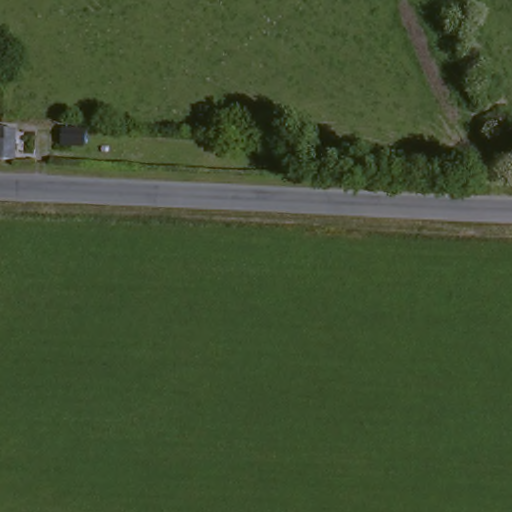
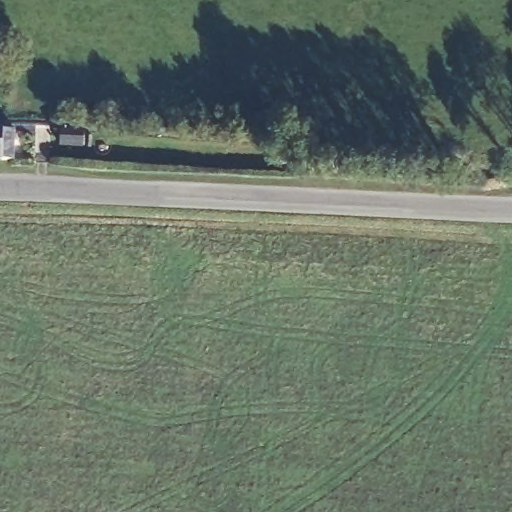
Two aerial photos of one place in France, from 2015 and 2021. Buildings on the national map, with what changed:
unchanged [(82,147),(59,146),(60,133),(83,134),(82,147)]
unchanged [(2,164),(0,164),(0,134),(2,135),(2,164)]

